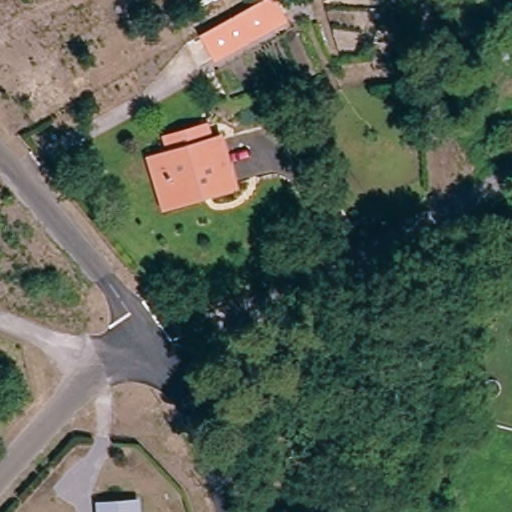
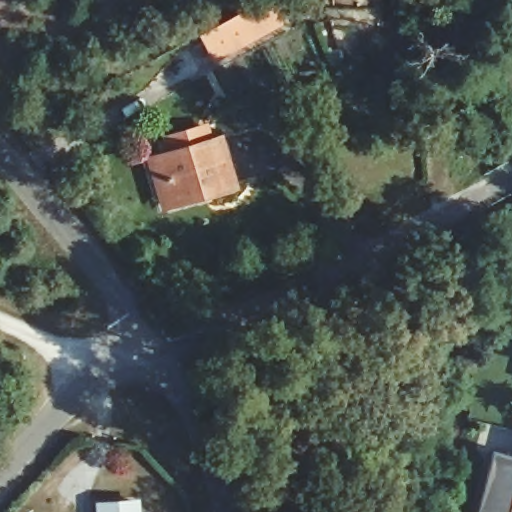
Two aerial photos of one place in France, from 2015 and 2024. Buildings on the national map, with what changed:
unchanged [(267,6),(273,2),(276,0),(281,0),(293,22),(280,30),(224,61),(210,37),(267,6)]
unchanged [(214,198),(164,213),(151,172),(172,166),(168,153),(209,141),(213,153),(221,151),(234,197),(215,203),(214,198)]
new [(510,512),(478,512),(495,448),(512,453),(512,503),(510,512)]
unchanged [(129,509),(129,512),(97,512),(129,509)]

